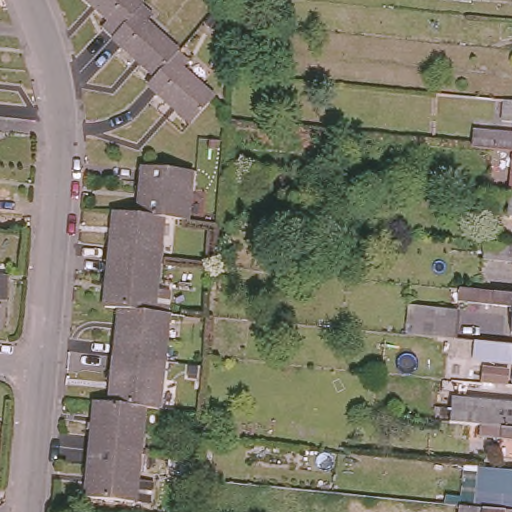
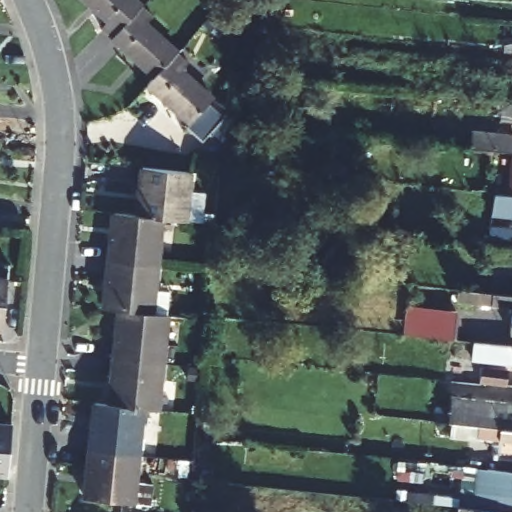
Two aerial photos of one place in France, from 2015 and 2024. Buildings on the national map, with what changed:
unchanged [(115,35),(104,25),(110,19),(90,0),(141,0),(144,3),(115,35)]
unchanged [(115,35),(144,3),(155,14),(148,22),(180,50),(157,73),(115,35)]
unchanged [(180,50),(192,61),(187,67),(216,95),(194,120),(160,90),(150,81),(157,73),(180,50)]
unchanged [(500,102),(508,102),(511,103),(512,103),(512,124),(499,124),(500,102)]
unchanged [(472,131),(512,135),(512,152),(470,149),(472,131)]
unchanged [(508,195),(512,161),(512,218),(506,217),(508,195)]
unchanged [(140,165),(192,169),(187,216),(163,215),(159,214),(136,212),(140,165)]
unchanged [(136,212),(159,214),(163,215),(157,261),(107,257),(112,210),(136,212)]
unchanged [(485,220),(500,221),(497,245),(512,247),(512,264),(485,262),(486,245),(483,244),(485,220)]
unchanged [(157,261),(152,310),(117,306),(103,305),(107,257),(157,261)]
unchanged [(4,282),(1,330),(0,330),(0,282),(4,282)]
unchanged [(482,290),(512,293),(512,305),(478,301),(479,290),(482,290)]
unchanged [(457,309),(456,333),(411,330),(415,303),(457,309)]
unchanged [(117,306),(152,310),(167,311),(161,358),(113,355),(117,306)]
unchanged [(512,311),(512,331),(511,330),(512,311)]
unchanged [(464,356),(466,337),(512,342),(512,361),(464,356)]
unchanged [(156,406),(142,405),(108,401),(113,355),(161,358),(156,406)]
unchanged [(472,365),(497,367),(496,383),(470,380),(472,365)]
unchanged [(89,448),(93,400),(108,401),(142,405),(137,452),(89,448)]
unchanged [(453,412),(454,400),(512,405),(512,432),(504,431),(452,425),(436,424),(438,411),(453,412)]
unchanged [(504,431),(512,432),(512,439),(504,438),(504,431)]
unchanged [(132,501),(84,496),(89,448),(137,452),(132,501)]
unchanged [(441,505),(442,495),(460,497),(463,470),(478,470),(497,472),(498,457),(511,458),(510,473),(512,474),(512,512),(457,512),(458,508),(441,505)]

